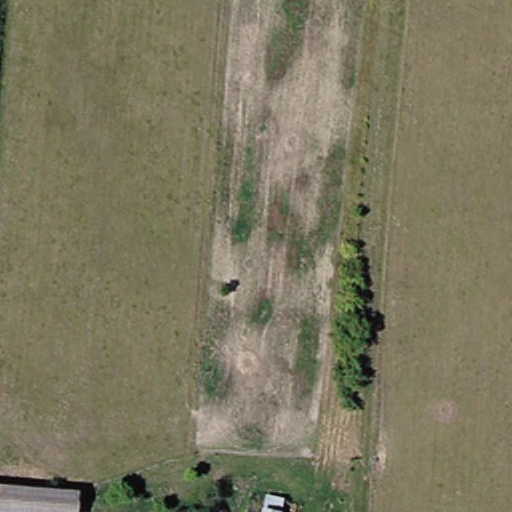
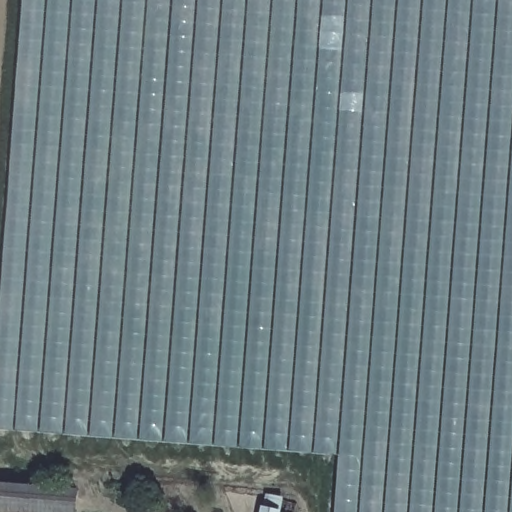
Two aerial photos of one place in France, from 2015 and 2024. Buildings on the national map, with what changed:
new [(0,430),(0,297),(23,0),(512,0),(512,512),(336,512),(340,456),(0,430)]
unchanged [(0,512),(0,485),(70,491),(68,512),(0,512)]
new [(282,512),(262,512),(266,493),(285,497),(282,512)]

